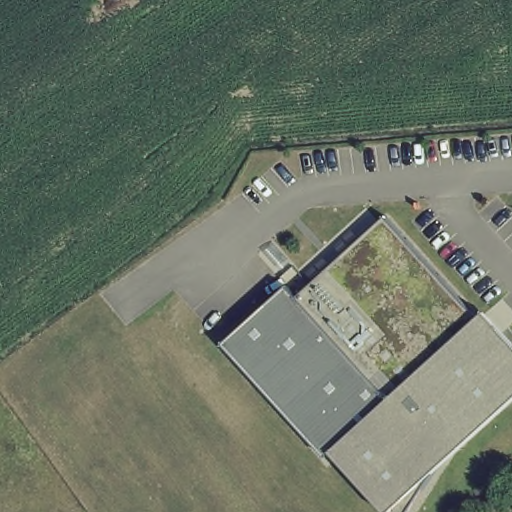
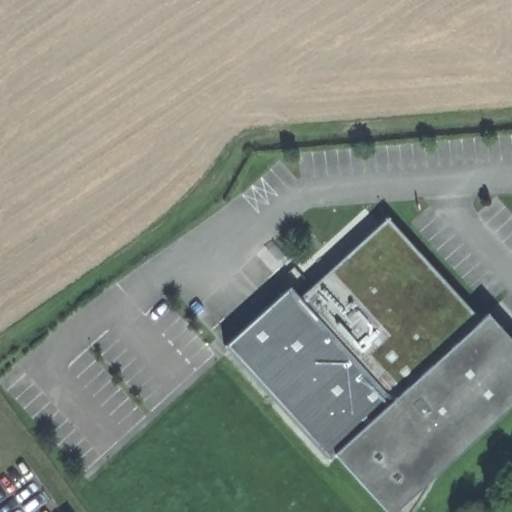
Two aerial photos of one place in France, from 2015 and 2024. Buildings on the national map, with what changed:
unchanged [(324,459),(221,347),(285,288),(295,299),(383,219),(477,321),(512,359),(512,387),(454,440),(431,477),(408,512),(393,512),(393,511),(391,512),(381,512),(330,455),(324,459)]
unchanged [(512,346),(512,359),(477,321),(484,314),(512,346)]
unchanged [(454,440),(512,387),(512,402),(431,477),(454,440)]

